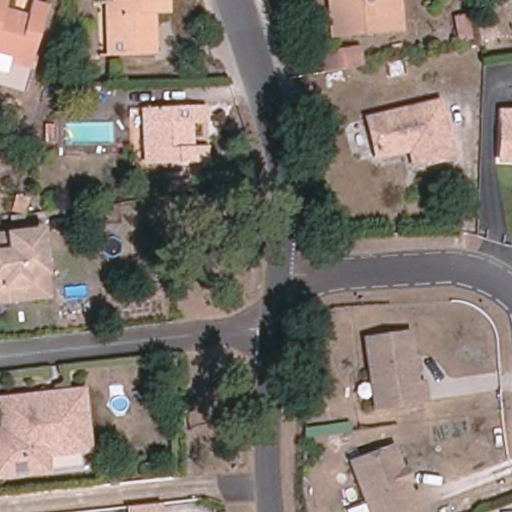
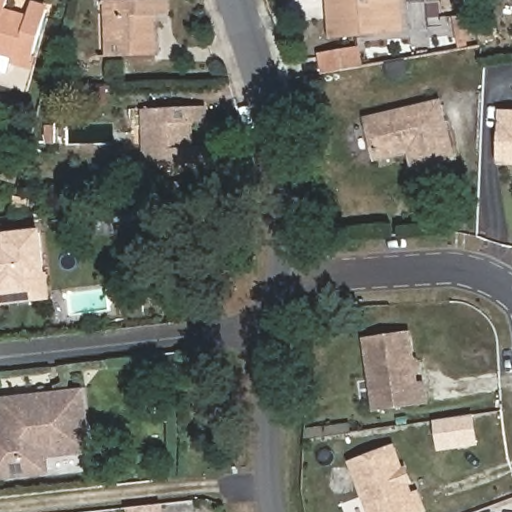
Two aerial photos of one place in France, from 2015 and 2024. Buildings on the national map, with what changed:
unchanged [(5,8),(16,11),(15,17),(27,20),(32,1),(49,5),(32,61),(0,51),(0,0),(8,0),(5,8)]
unchanged [(106,57),(105,1),(130,0),(169,0),(170,15),(150,16),(150,26),(155,25),(155,56),(106,57)]
unchanged [(329,0),(401,0),(403,32),(390,33),(332,37),(329,0)]
unchanged [(469,15),(473,42),(458,44),(454,18),(469,15)]
unchanged [(325,73),(322,56),(360,49),(362,67),(325,73)]
unchanged [(378,159),(368,120),(440,103),(454,158),(415,167),(411,151),(378,159)]
unchanged [(205,107),(205,123),(190,124),(191,135),(185,135),(185,148),(206,147),(207,164),(149,166),(147,109),(205,107)]
unchanged [(502,115),(502,108),(512,109),(512,157),(500,156),(502,115)]
unchanged [(169,190),(169,189),(170,189),(170,183),(190,182),(190,189),(190,191),(169,193),(169,190)]
unchanged [(7,233),(45,229),(50,275),(51,299),(0,305),(0,234),(7,233)]
unchanged [(424,384),(426,402),(376,409),(366,340),(410,334),(418,385),(424,384)]
unchanged [(92,454),(50,460),(51,475),(0,481),(0,428),(1,427),(0,420),(0,399),(86,388),(92,454)]
new [(437,450),(433,421),(475,414),(479,444),(437,450)]
unchanged [(422,512),(371,512),(352,463),(395,448),(412,496),(418,494),(425,511),(422,512)]
unchanged [(129,512),(129,508),(159,505),(160,512),(129,512)]

